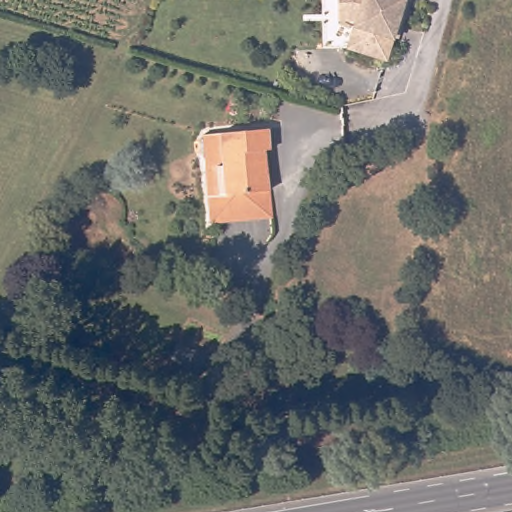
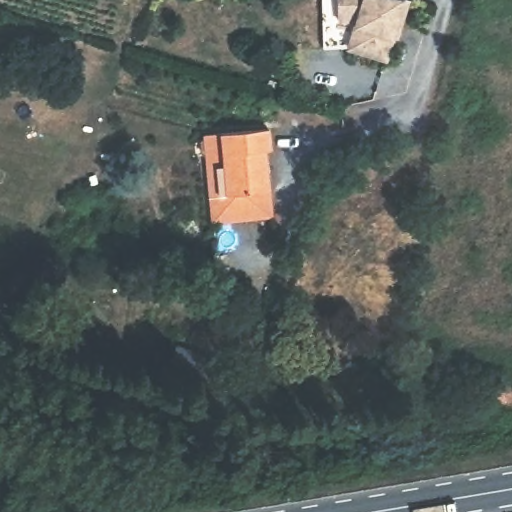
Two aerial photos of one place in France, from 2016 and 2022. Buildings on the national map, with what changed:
unchanged [(412,4),(403,34),(399,32),(390,63),(353,52),(328,52),(327,0),(398,0),(412,4)]
unchanged [(270,147),(265,148),(269,189),(228,192),(230,218),(211,220),(207,154),(201,147),(200,139),(206,134),(206,131),(268,127),(270,147)]
unchanged [(271,215),(230,218),(228,192),(269,189),(271,215)]
unchanged [(176,345),(204,355),(199,369),(170,359),(176,345)]

